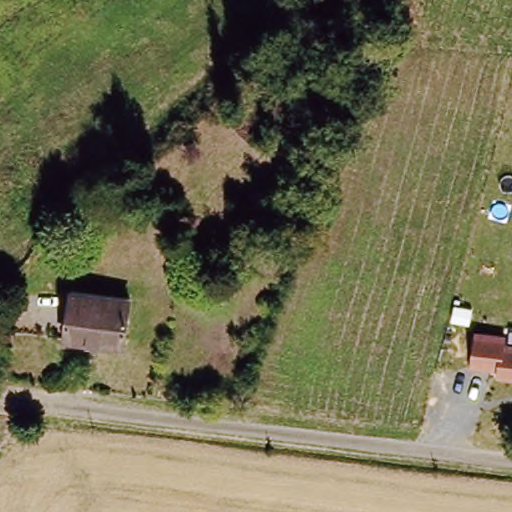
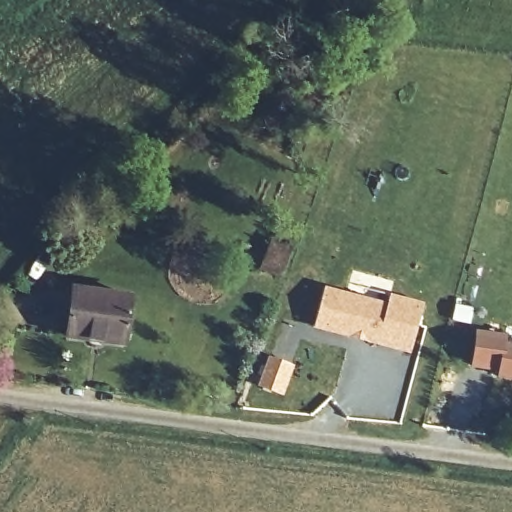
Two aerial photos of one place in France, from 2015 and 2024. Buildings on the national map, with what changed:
unchanged [(259,270),(269,241),(289,247),(278,277),(259,270)]
new [(323,285),(388,302),(391,293),(423,301),(409,352),(314,328),(323,285)]
unchanged [(65,336),(70,287),(132,293),(127,341),(65,336)]
unchanged [(503,367),(475,364),(479,331),(508,334),(507,342),(512,342),(512,376),(502,375),(503,367)]

